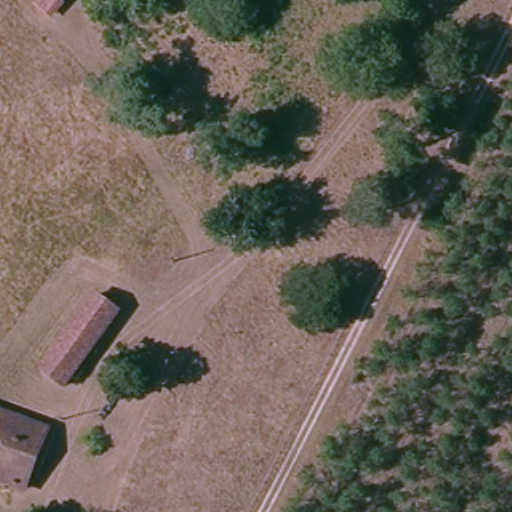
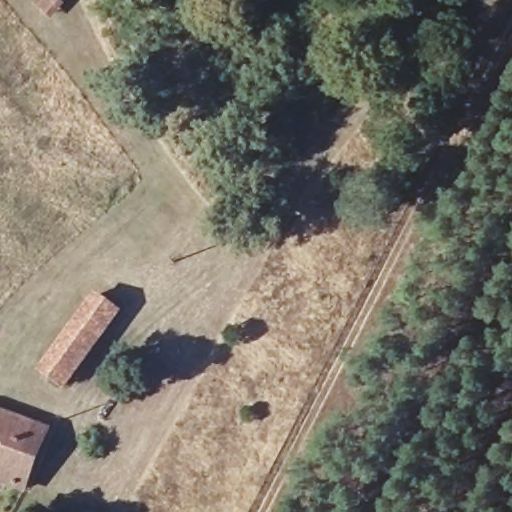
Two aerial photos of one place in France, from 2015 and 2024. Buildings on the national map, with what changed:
unchanged [(52,30),(40,20),(51,9),(62,17),(52,30)]
unchanged [(116,306),(66,382),(44,366),(94,290),(116,306)]
unchanged [(18,488),(0,482),(0,410),(44,425),(18,488)]

